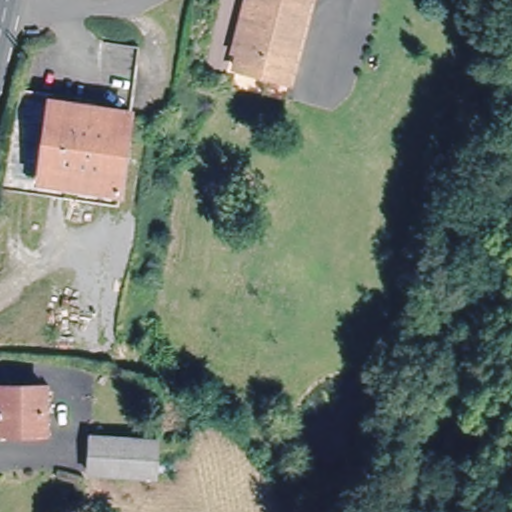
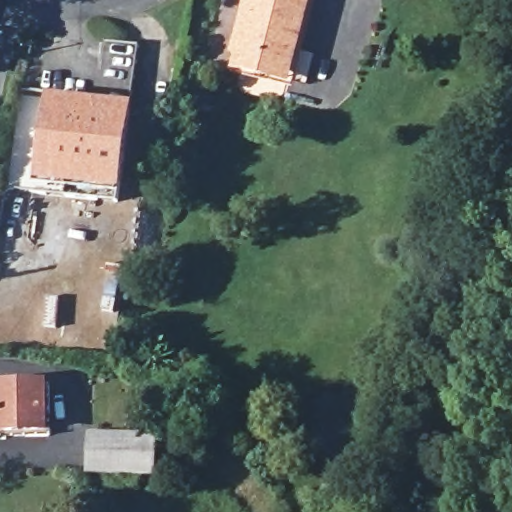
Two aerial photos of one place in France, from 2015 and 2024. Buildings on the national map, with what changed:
unchanged [(231,64),(237,48),(230,45),(247,0),(312,0),(282,82),(231,64)]
unchanged [(123,183),(38,173),(46,91),(130,99),(123,183)]
unchanged [(45,430),(0,431),(0,387),(45,387),(45,430)]
unchanged [(157,436),(155,472),(89,467),(92,431),(157,436)]

